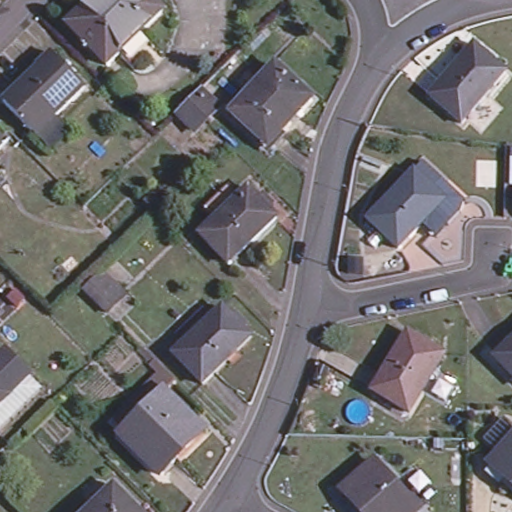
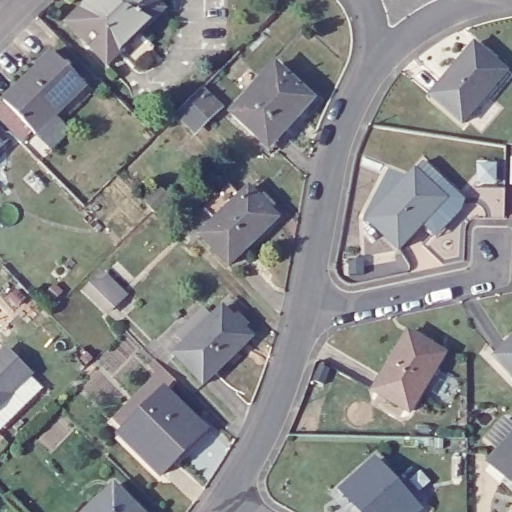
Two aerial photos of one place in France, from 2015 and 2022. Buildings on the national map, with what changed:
unchanged [(76,36),(72,29),(72,21),(76,12),(90,0),(151,0),(160,10),(103,65),(76,36)]
unchanged [(432,101),(477,52),(506,78),(460,128),(432,101)]
unchanged [(39,68),(54,53),(85,86),(53,117),(59,124),(40,142),(5,105),(41,70),(39,68)]
unchanged [(312,100),(266,148),(230,114),(277,66),(312,100)]
unchanged [(180,117),(193,103),(205,91),(223,109),(211,121),(197,135),(180,117)]
unchanged [(447,202),(401,249),(372,220),(417,173),(447,202)]
unchanged [(277,219),(230,265),(203,236),(251,190),(277,219)]
unchanged [(257,333),(207,380),(182,354),(230,306),(257,333)]
unchanged [(412,336),(445,355),(412,415),(379,396),(412,336)]
unchanged [(492,360),(512,339),(512,378),(492,360)]
unchanged [(0,406),(0,381),(12,393),(0,406)]
unchanged [(124,438),(165,396),(201,433),(160,475),(124,438)]
unchanged [(495,462),(512,445),(512,478),(495,462)]
unchanged [(418,511),(417,512),(364,512),(345,491),(375,465),(418,511)]
unchanged [(135,512),(90,512),(112,489),(135,512)]

